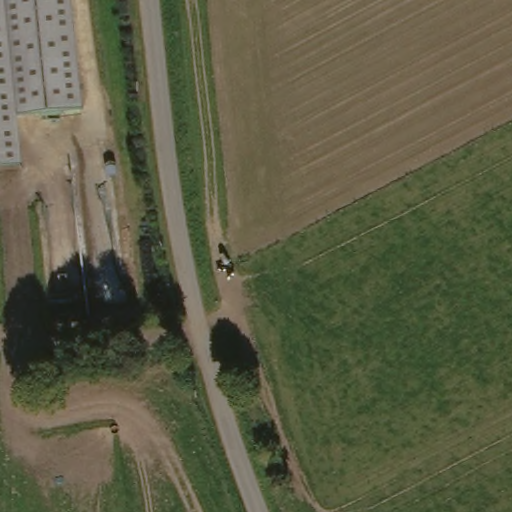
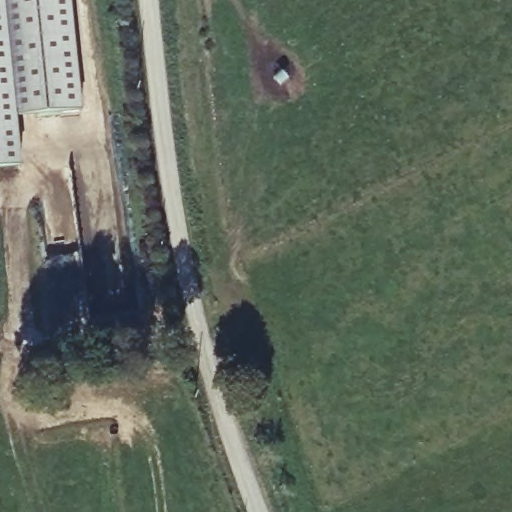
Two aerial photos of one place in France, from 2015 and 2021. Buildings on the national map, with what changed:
unchanged [(79,107),(14,118),(0,37),(0,0),(61,0),(79,107)]
unchanged [(14,118),(22,167),(0,170),(0,37),(14,118)]

